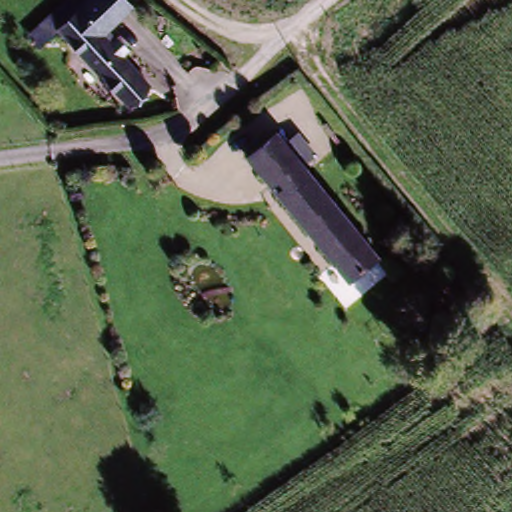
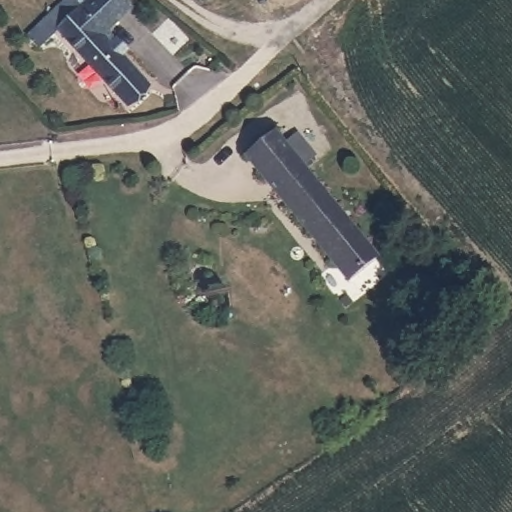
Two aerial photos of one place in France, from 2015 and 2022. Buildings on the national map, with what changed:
unchanged [(93,0),(122,0),(132,11),(102,38),(80,12),(93,0)]
unchanged [(92,77),(55,35),(80,12),(102,38),(117,55),(92,77)]
unchanged [(147,90),(123,111),(92,77),(117,55),(147,90)]
unchanged [(275,135),(379,260),(346,288),(243,157),(275,135)]

